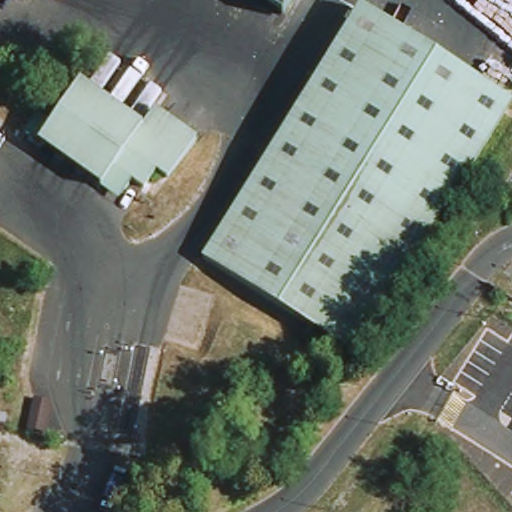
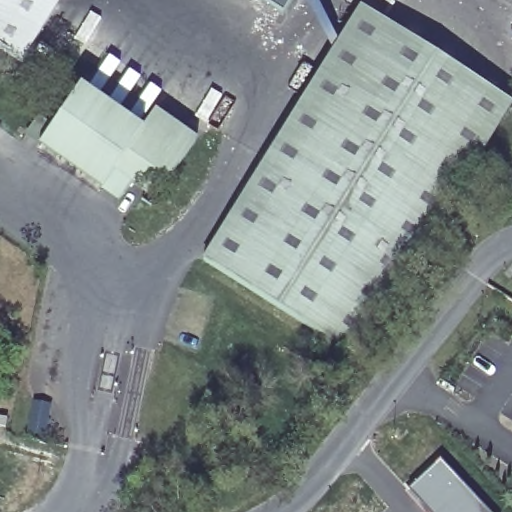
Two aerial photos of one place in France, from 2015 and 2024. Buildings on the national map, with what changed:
new [(62,0),(22,60),(0,46),(0,0),(62,0)]
unchanged [(261,0),(289,0),(281,13),(261,0)]
unchanged [(357,11),(509,103),(369,335),(356,357),(355,357),(204,265),(357,11)]
unchanged [(143,130),(156,110),(200,140),(170,183),(158,175),(150,186),(121,166),(103,190),(41,148),(82,88),(142,129),(143,130)]
unchanged [(46,408),(39,438),(23,435),(30,405),(46,408)]
unchanged [(2,421),(1,430),(0,430),(0,420),(2,421)]
new [(439,462),(486,512),(430,512),(409,489),(439,462)]

